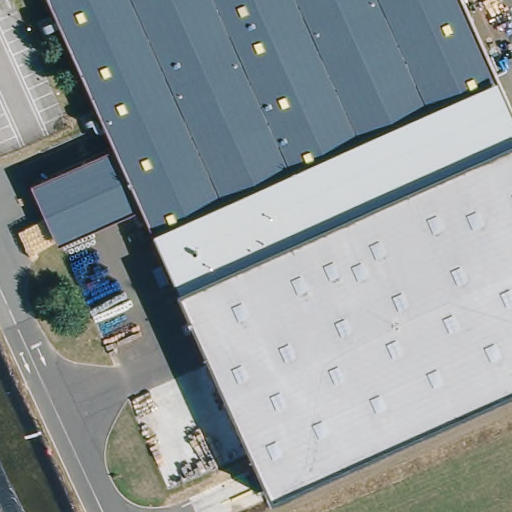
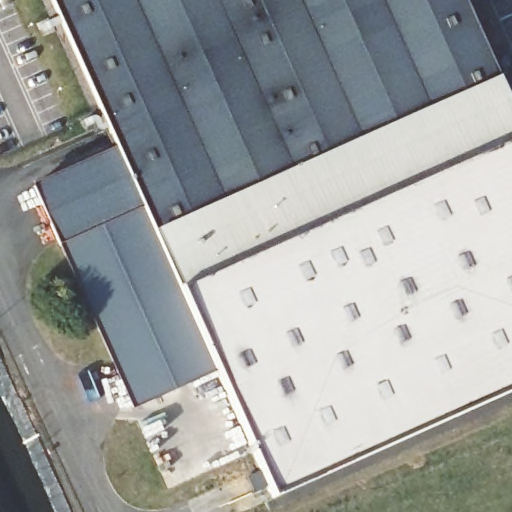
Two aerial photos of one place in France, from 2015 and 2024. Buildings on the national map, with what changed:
unchanged [(172,291),(137,214),(114,157),(40,0),(458,0),(512,121),(512,136),(172,291)]
unchanged [(179,288),(510,137),(512,136),(512,389),(272,496),(179,288)]
unchanged [(52,251),(27,198),(114,157),(137,214),(52,251)]
new [(137,214),(172,291),(179,288),(216,371),(132,410),(60,248),(137,214)]

